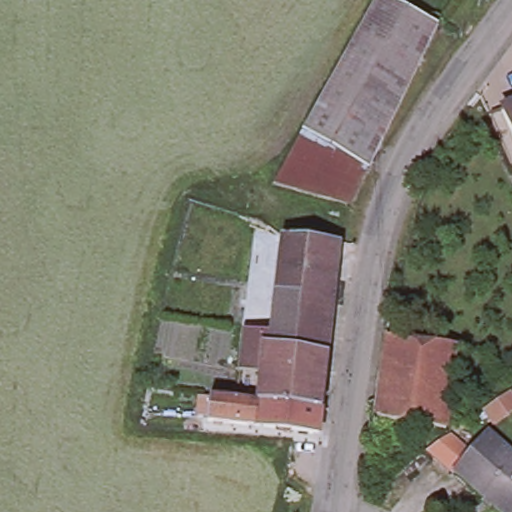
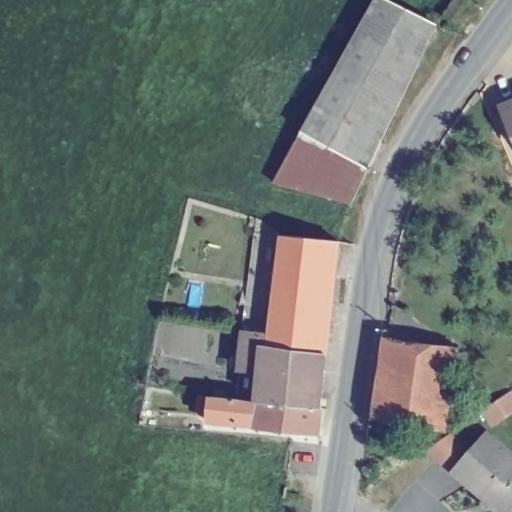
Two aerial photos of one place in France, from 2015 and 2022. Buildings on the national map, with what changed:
unchanged [(299,131),(319,95),(373,0),(394,0),(436,20),(368,164),(299,131)]
unchanged [(497,99),(512,93),(512,132),(497,99)]
unchanged [(350,202),(272,180),(299,131),(368,164),(350,202)]
unchanged [(257,225),(248,223),(252,214),(260,216),(257,225)]
unchanged [(281,234),(337,238),(331,294),(275,289),(281,234)]
unchanged [(258,367),(260,357),(240,353),(244,329),(270,333),(275,289),(331,294),(325,352),(323,373),(258,367)]
unchanged [(382,334),(452,345),(446,374),(477,378),(475,407),(442,403),(439,427),(427,425),(423,442),(367,432),(368,416),(382,334)]
unchanged [(323,373),(320,404),(255,398),(258,367),(323,373)]
unchanged [(320,404),(317,429),(293,427),(255,423),(253,429),(232,428),(232,421),(205,418),(207,392),(235,396),(255,399),(255,398),(320,404)]
unchanged [(507,512),(504,512),(471,483),(453,468),(473,444),(486,429),(512,452),(512,460),(512,506),(507,512)]

